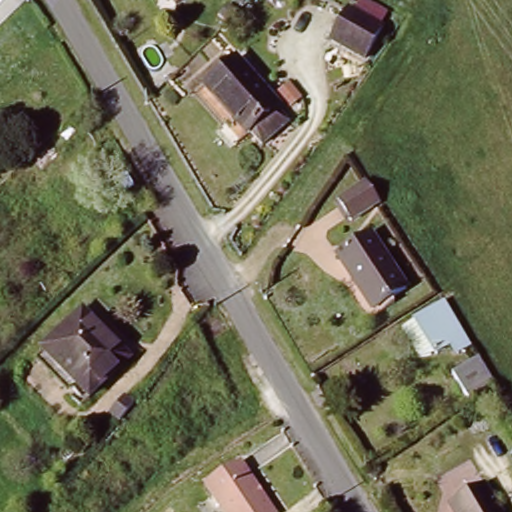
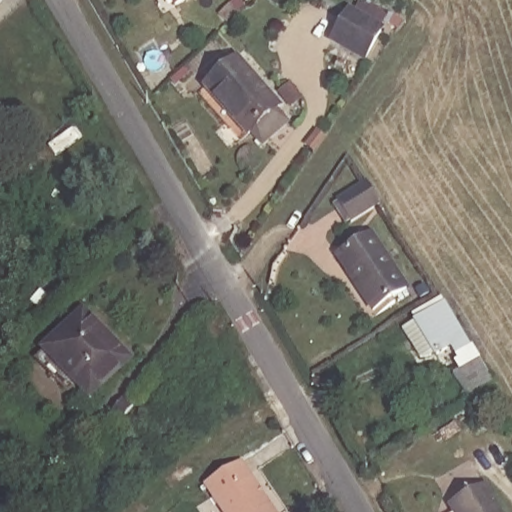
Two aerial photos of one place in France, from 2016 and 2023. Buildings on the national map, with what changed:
unchanged [(174,0),(191,0),(178,7),(174,0)]
unchanged [(375,24),(360,50),(342,39),(357,13),(375,24)]
unchanged [(296,114),(273,136),(258,120),(251,128),(207,83),(237,54),(296,114)]
unchanged [(356,218),(342,197),(372,178),(385,198),(356,218)]
unchanged [(377,233),(411,287),(379,306),(345,253),(377,233)]
unchanged [(476,341),(468,346),(462,337),(448,346),(432,346),(415,320),(449,299),(476,341)]
unchanged [(133,356),(98,394),(52,349),(86,312),(133,356)]
unchanged [(482,360),(498,386),(477,399),(461,375),(482,360)]
unchanged [(282,512),(232,512),(213,485),(247,461),(282,512)]
unchanged [(486,486),(503,512),(458,512),(455,506),(486,486)]

